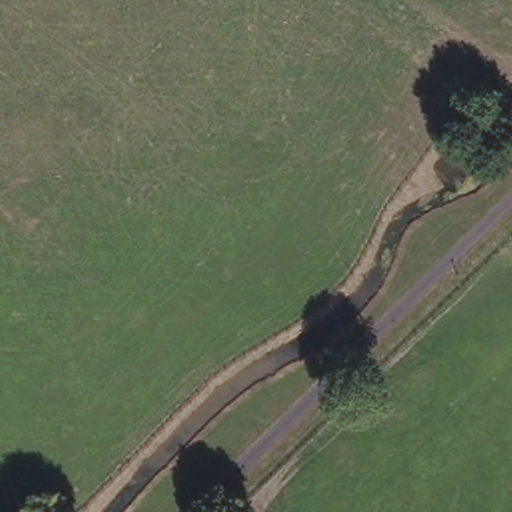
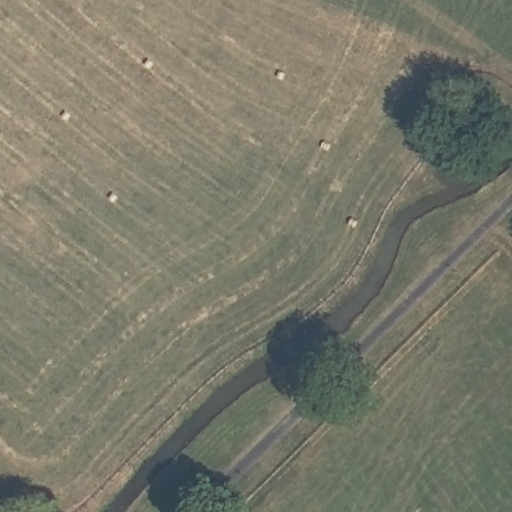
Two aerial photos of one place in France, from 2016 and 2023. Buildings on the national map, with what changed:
[]

